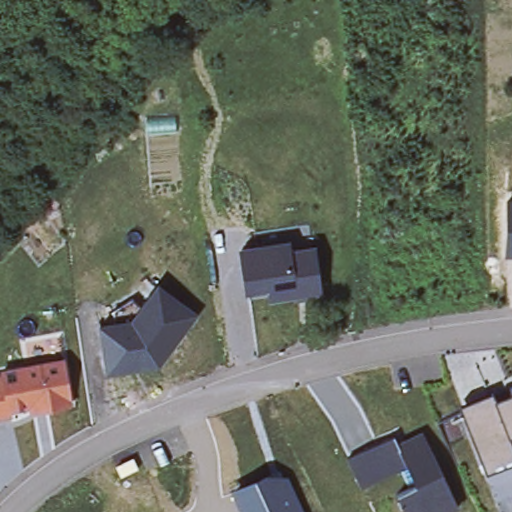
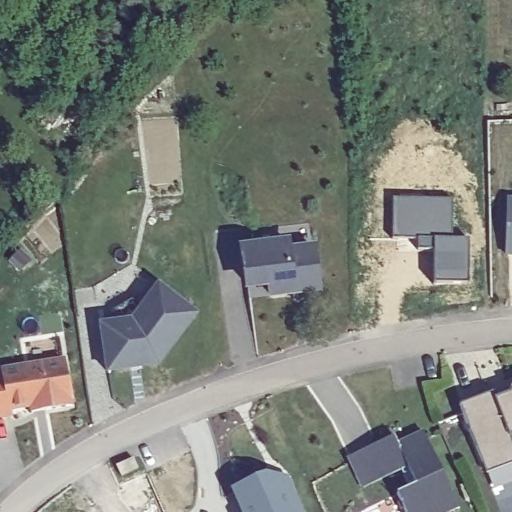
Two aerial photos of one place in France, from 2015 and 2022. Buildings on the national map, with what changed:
new [(452,197),(452,235),(469,236),(470,279),(435,279),(435,247),(418,246),(418,235),(395,235),(394,196),(452,197)]
unchanged [(507,199),(512,199),(512,256),(505,256),(507,199)]
unchanged [(259,255),(257,238),(305,231),(311,230),(312,239),(320,296),(252,306),(245,257),(259,255)]
unchanged [(161,368),(104,377),(98,327),(112,325),(111,311),(131,300),(142,308),(161,284),(199,315),(161,368)]
unchanged [(12,411),(12,416),(0,418),(0,378),(5,377),(4,372),(66,362),(73,406),(49,410),(34,413),(32,408),(12,411)]
unchanged [(509,438),(512,447),(512,465),(485,475),(457,409),(492,396),(496,403),(512,396),(512,437),(509,438)]
unchanged [(401,512),(394,496),(407,490),(398,472),(360,490),(345,459),(390,438),(394,447),(420,435),(455,509),(448,512),(401,512)]
unchanged [(140,470),(122,478),(118,469),(136,461),(140,470)]
unchanged [(285,470),(302,512),(237,512),(229,493),(285,470)]

